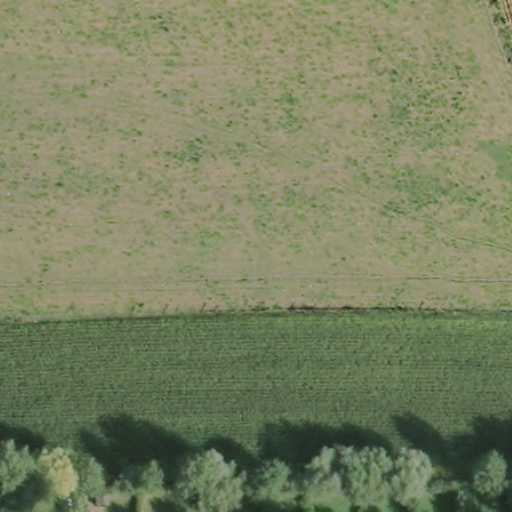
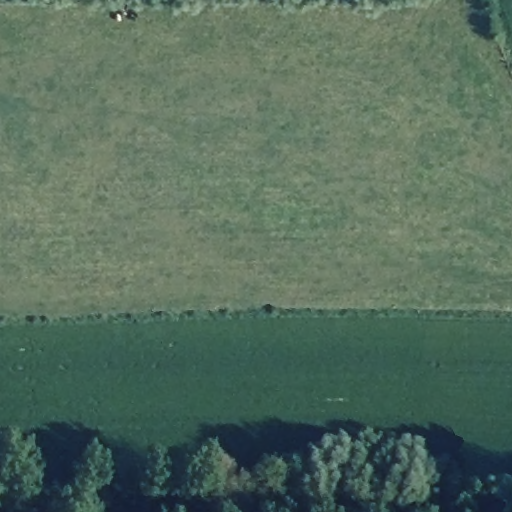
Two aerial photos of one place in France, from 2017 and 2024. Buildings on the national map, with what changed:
unchanged [(280,512),(265,512),(266,493),(281,492),(280,512)]
unchanged [(426,512),(411,512),(413,493),(427,495),(426,512)]
unchanged [(336,512),(313,512),(313,497),(338,496),(336,512)]
unchanged [(240,512),(218,512),(217,500),(239,502),(240,512)]

